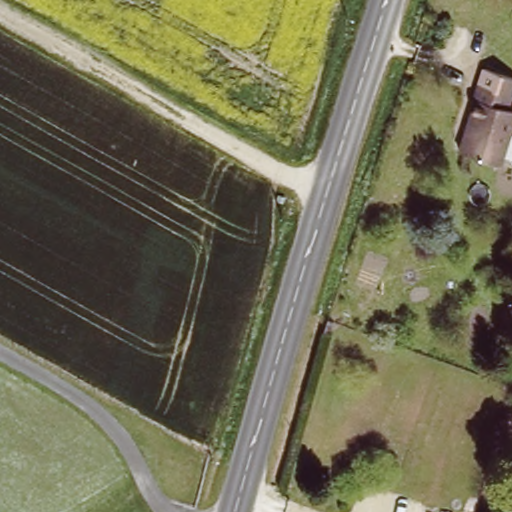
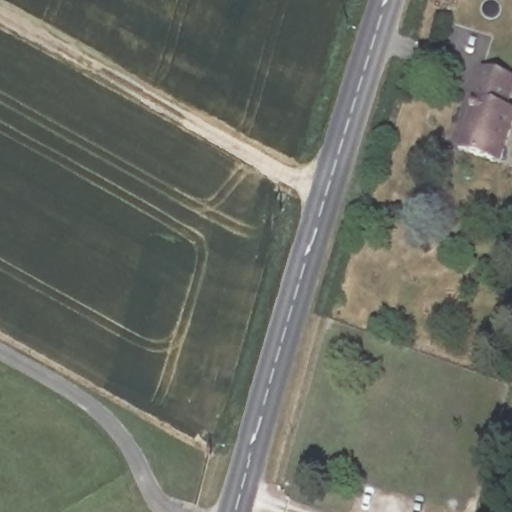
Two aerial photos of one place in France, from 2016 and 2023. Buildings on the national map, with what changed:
unchanged [(500,100),(510,104),(491,157),(455,145),(470,95),(465,93),(476,61),(510,73),(500,100)]

